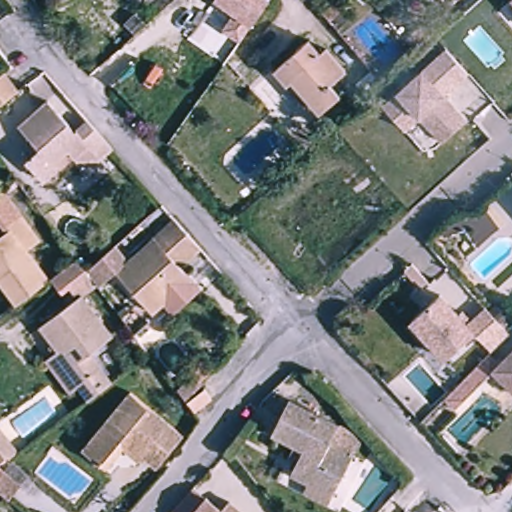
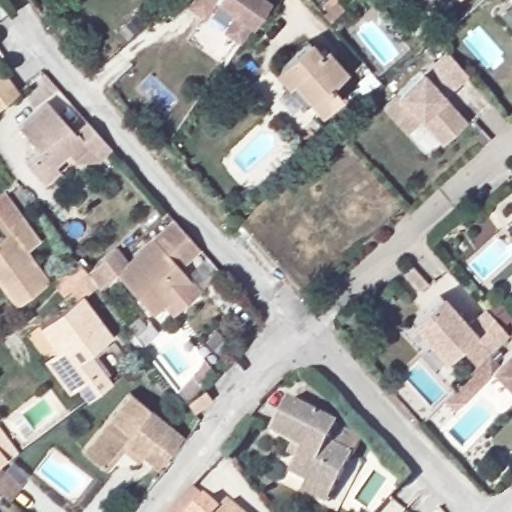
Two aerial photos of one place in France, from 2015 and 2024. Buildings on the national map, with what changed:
unchanged [(225,31),(235,14),(214,1),(214,0),(268,0),(241,42),(225,31)]
unchanged [(326,9),(336,1),(343,9),(333,17),(326,9)]
unchanged [(287,80),(275,65),(308,36),(319,49),(325,44),(345,68),(330,80),(339,91),(320,108),(311,99),(306,103),(287,80)]
unchanged [(457,84),(445,95),(449,99),(446,102),(452,109),(455,106),(467,119),(443,141),(421,117),(406,130),(384,106),(436,60),(457,84)]
unchanged [(13,91),(0,101),(0,76),(11,90),(13,91)]
unchanged [(73,128),(86,116),(111,144),(99,154),(75,157),(66,147),(53,159),(57,164),(42,177),(25,158),(38,146),(18,123),(46,97),(73,128)]
unchanged [(4,230),(3,231),(0,233),(0,232),(0,194),(15,215),(0,226),(4,230)]
unchanged [(3,231),(0,226),(15,215),(33,241),(20,251),(43,281),(9,306),(0,293),(0,233),(3,231)]
unchanged [(161,301),(147,313),(110,271),(92,287),(91,286),(77,297),(73,298),(64,286),(80,272),(112,243),(125,258),(168,220),(176,229),(193,249),(175,266),(181,273),(195,288),(169,311),(161,301)]
unchanged [(63,286),(64,286),(56,293),(45,279),(71,259),(80,272),(63,286)]
unchanged [(442,293),(469,323),(488,306),(511,332),(493,348),(477,330),(448,356),(414,318),(442,293)]
unchanged [(40,360),(48,354),(53,351),(34,327),(73,298),(75,296),(77,297),(106,337),(84,354),(105,382),(83,399),(73,387),(65,393),(40,360)]
unchanged [(490,366),(512,345),(512,388),(490,366)]
unchanged [(176,390),(191,375),(199,386),(185,401),(176,391),(176,390)]
unchanged [(122,446),(105,466),(100,461),(81,446),(128,388),(181,431),(156,463),(155,463),(141,452),(137,457),(122,446)]
unchanged [(210,399),(193,411),(186,402),(198,393),(203,389),(210,399)]
unchanged [(308,486),(311,478),(295,469),(302,454),(293,450),(299,440),(276,429),(293,395),(343,421),(334,439),(358,451),(336,491),(333,499),(308,486)]
unchanged [(0,457),(0,446),(5,453),(0,457)]
unchanged [(20,481),(8,494),(0,487),(0,466),(1,465),(20,481)]
unchanged [(212,512),(192,512),(200,502),(212,512)]
unchanged [(230,512),(218,512),(223,507),(230,512)]

